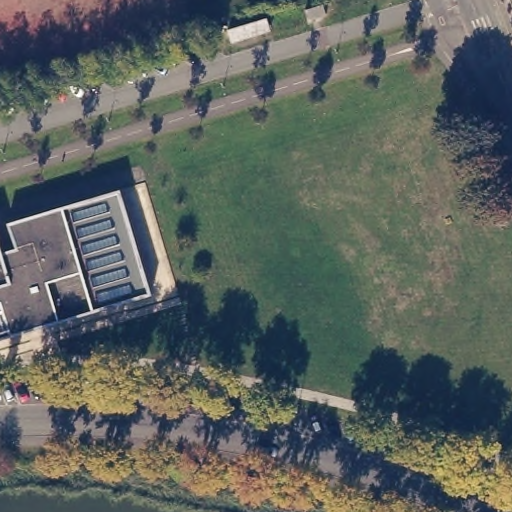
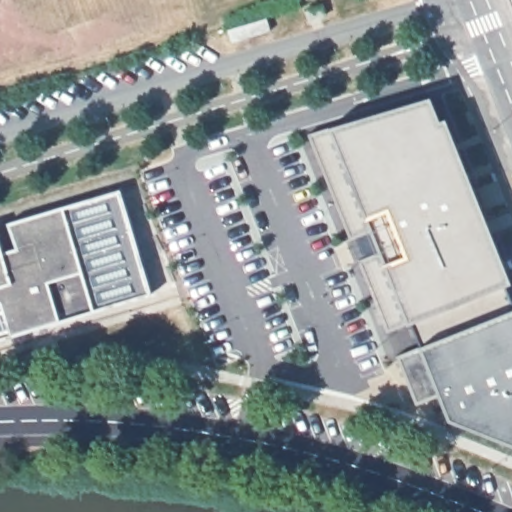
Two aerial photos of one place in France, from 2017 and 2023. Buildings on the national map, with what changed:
new [(388,331),(360,260),(380,252),(370,229),(351,237),(310,133),(329,127),(430,95),(440,119),(447,117),(512,280),(512,283),(408,324),(388,331)]
unchanged [(152,294),(0,340),(0,241),(3,250),(16,247),(8,222),(119,188),(152,294)]
new [(421,347),(512,310),(512,444),(449,418),(421,347)]

